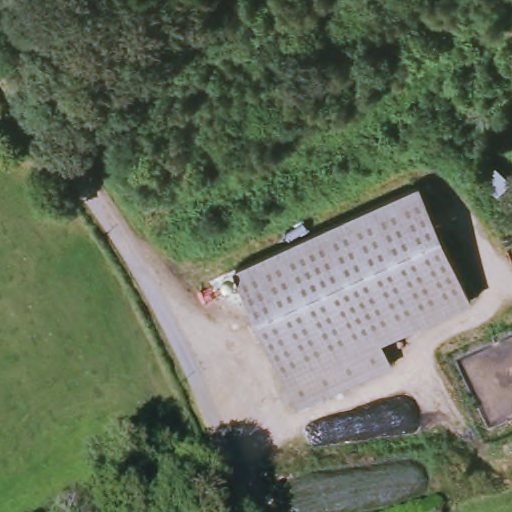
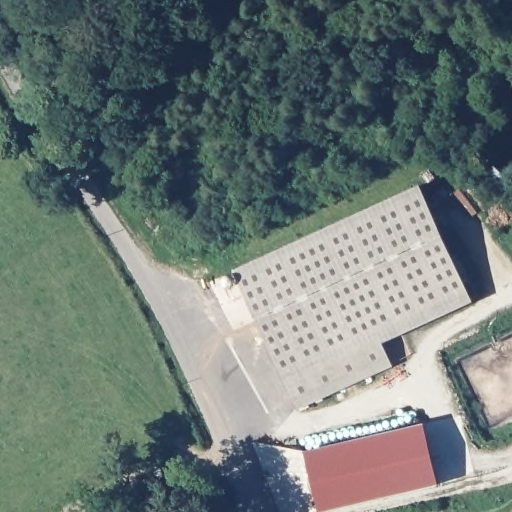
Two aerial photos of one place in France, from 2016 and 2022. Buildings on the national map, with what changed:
unchanged [(392,363),(300,403),(240,269),(425,189),(474,301),(382,341),(392,363)]
new [(423,422),(437,484),(319,508),(306,447),(423,422)]

